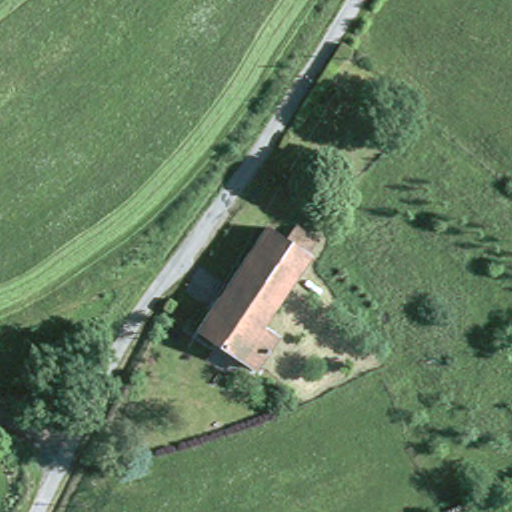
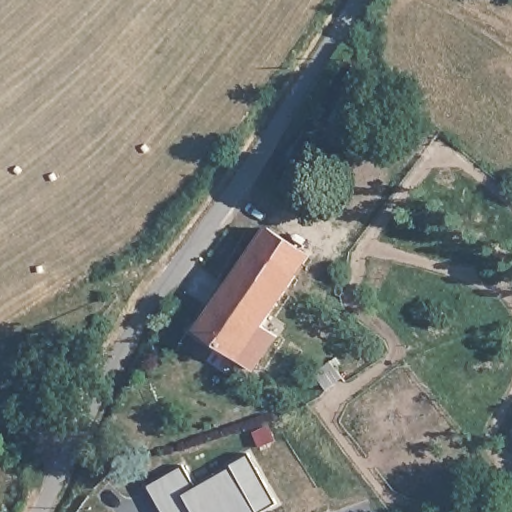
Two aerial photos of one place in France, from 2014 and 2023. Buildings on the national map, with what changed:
unchanged [(276,337),(253,370),(197,332),(266,231),(286,244),(298,230),(319,244),(309,260),(262,328),(276,337)]
new [(183,465),(194,486),(249,454),(277,502),(259,512),(163,512),(147,485),(183,465)]

